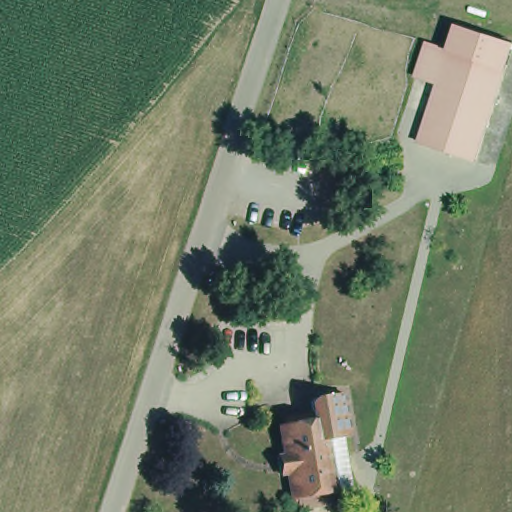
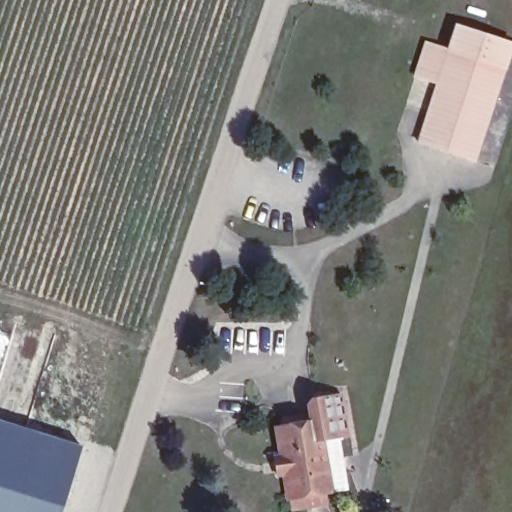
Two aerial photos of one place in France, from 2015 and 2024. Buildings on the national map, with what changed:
unchanged [(458,47),(466,22),(512,37),(512,72),(484,159),(426,139),(445,82),(427,76),(439,41),(458,47)]
unchanged [(286,483),(282,484),(277,457),(268,460),(265,440),(275,437),(270,413),(280,412),(280,405),(306,401),(304,389),(335,382),(341,423),(330,426),(338,474),(323,476),(317,477),(320,491),(289,495),(286,483)]
new [(86,446),(65,512),(0,512),(0,418),(86,446)]

